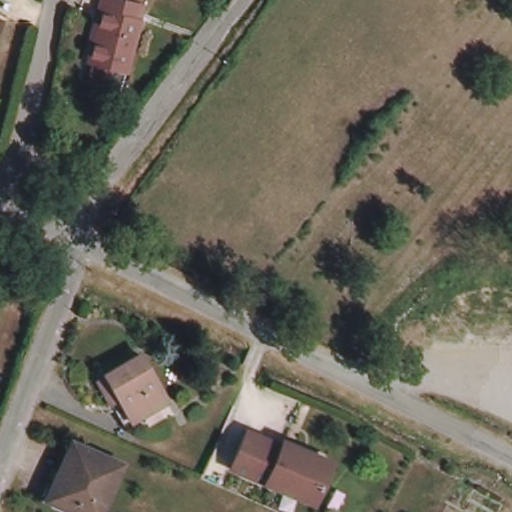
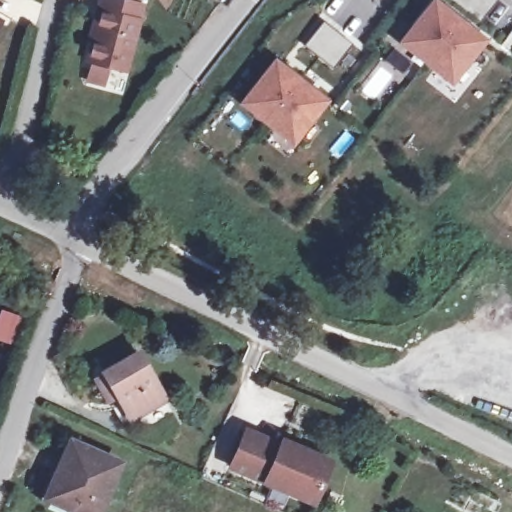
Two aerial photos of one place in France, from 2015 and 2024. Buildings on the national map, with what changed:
unchanged [(92,62),(88,62),(103,14),(99,12),(102,0),(122,0),(146,8),(127,72),(108,67),(104,85),(87,81),(92,62)]
new [(438,0),(488,39),(452,86),(397,43),(428,0),(438,0)]
new [(453,0),(497,0),(480,21),(453,0)]
unchanged [(2,21),(0,23),(0,20),(2,21)]
new [(305,45),(324,22),(352,44),(334,67),(305,45)]
new [(330,100),(295,147),(239,104),(275,57),(330,100)]
unchanged [(97,387),(104,381),(102,378),(132,352),(169,395),(137,422),(119,399),(112,405),(97,387)]
unchanged [(307,505),(230,470),(247,433),(281,448),(283,442),(332,464),(322,488),(313,507),(307,505)]
unchanged [(69,442),(119,461),(98,512),(79,512),(47,500),(69,442)]

